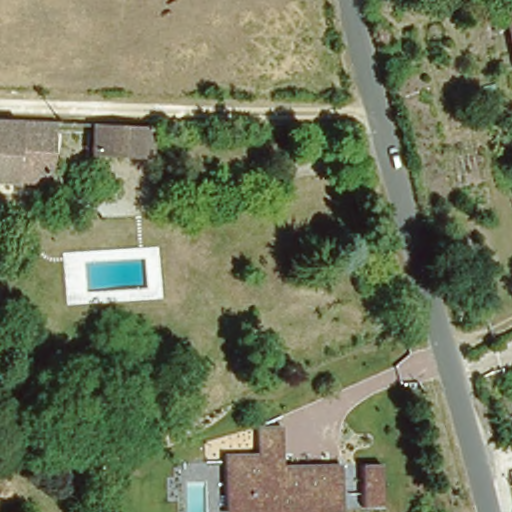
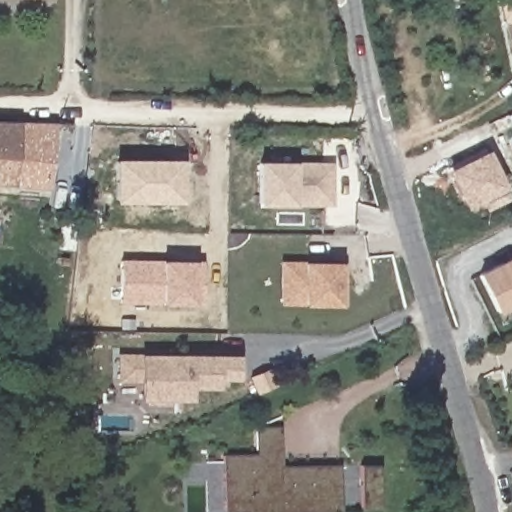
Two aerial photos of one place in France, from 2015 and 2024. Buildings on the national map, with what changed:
unchanged [(512,0),(512,37),(504,0),(512,0)]
unchanged [(45,185),(0,181),(0,122),(51,124),(45,185)]
demolished [(148,156),(91,153),(93,125),(150,127),(148,156)]
new [(511,198),(486,210),(480,199),(464,208),(445,170),(486,150),(505,189),(511,198)]
new [(182,160),(180,203),(115,201),(116,159),(182,160)]
new [(294,206),(257,206),(257,161),(295,161),(295,160),(333,161),(332,205),(294,206)]
new [(510,254),(512,258),(512,300),(492,309),(474,273),(510,254)]
new [(194,305),(160,304),(120,303),(121,260),(161,260),(196,261),(203,260),(202,304),(194,305)]
new [(303,260),(303,262),(339,262),(338,260),(345,260),(345,307),(339,307),(301,306),(280,305),(280,260),(303,260)]
new [(217,379),(218,388),(190,388),(191,401),(139,399),(138,382),(119,382),(118,354),(138,353),(238,353),(238,379),(217,379)]
unchanged [(282,429),(282,469),(257,469),(257,454),(256,429),(282,429)]
unchanged [(282,469),(339,468),(340,511),(223,512),(222,454),(257,454),(257,469),(282,469)]
unchanged [(359,468),(379,468),(380,511),(360,511),(359,468)]
unchanged [(340,511),(340,512),(223,512),(340,511)]

